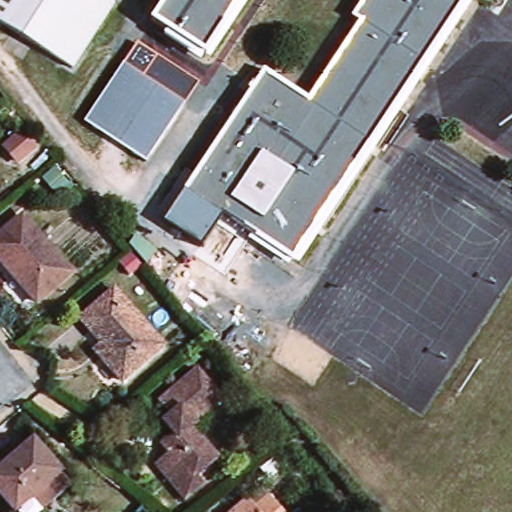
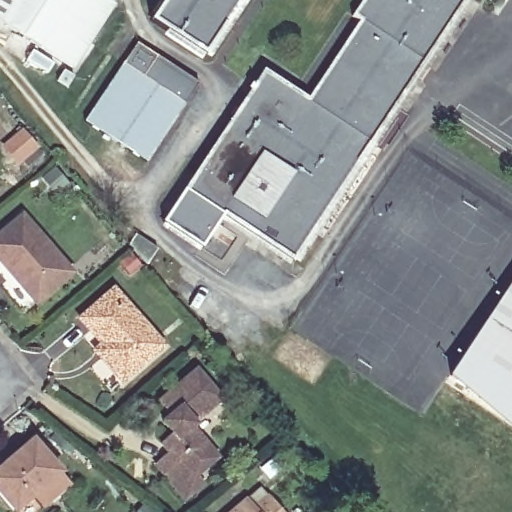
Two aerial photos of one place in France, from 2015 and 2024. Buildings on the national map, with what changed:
unchanged [(0,19),(0,0),(73,0),(43,47),(0,19)]
unchanged [(117,4),(75,68),(43,47),(73,0),(112,0),(117,4)]
unchanged [(208,53),(156,19),(169,0),(243,0),(208,53)]
unchanged [(248,226),(190,188),(269,71),(312,100),(364,19),(358,14),(367,0),(469,0),(298,260),(276,245),(248,226)]
unchanged [(183,102),(146,159),(86,120),(124,62),(183,102)]
unchanged [(17,161),(4,145),(23,130),(35,145),(17,161)]
unchanged [(71,272),(34,302),(0,261),(0,233),(22,215),(71,272)]
new [(512,430),(446,377),(512,277),(512,430)]
unchanged [(163,345),(121,381),(99,356),(106,350),(79,317),(113,287),(163,345)]
unchanged [(221,405),(191,430),(218,462),(197,480),(203,487),(183,503),(154,468),(166,458),(158,448),(171,438),(161,427),(168,420),(158,407),(196,374),(221,405)]
unchanged [(29,497),(39,508),(35,512),(15,512),(0,494),(0,467),(32,440),(59,472),(29,497)]
unchanged [(253,506),(267,494),(283,512),(228,512),(246,497),(253,506)]

